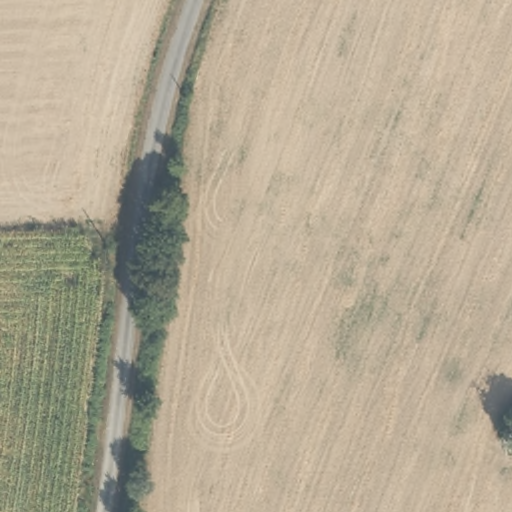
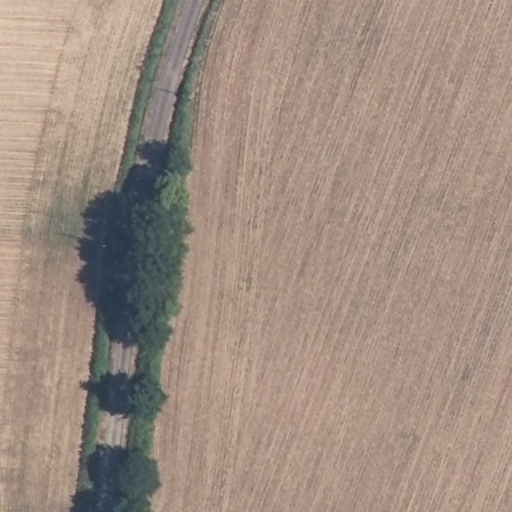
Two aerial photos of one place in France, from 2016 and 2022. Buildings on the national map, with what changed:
[]

